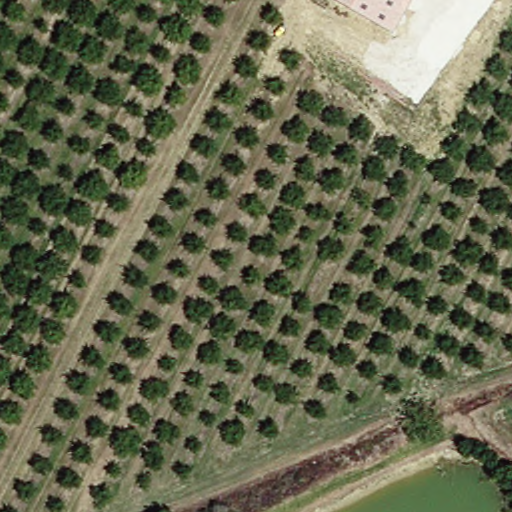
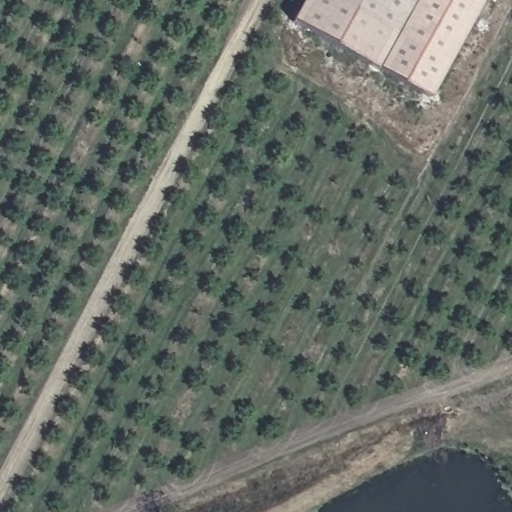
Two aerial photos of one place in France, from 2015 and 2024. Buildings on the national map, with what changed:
new [(383,63),(298,16),(306,0),(417,0),(383,63)]
new [(439,93),(383,63),(417,0),(488,0),(439,93)]

